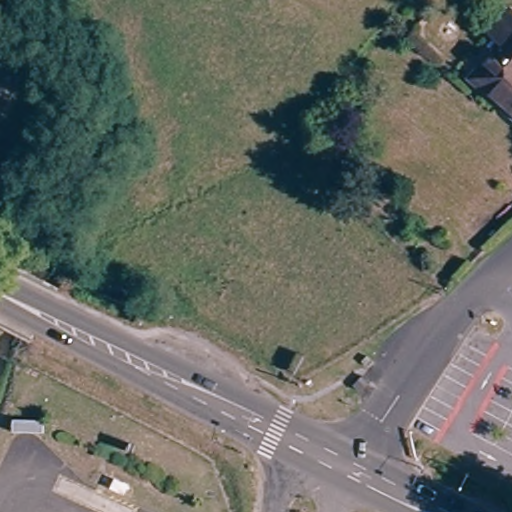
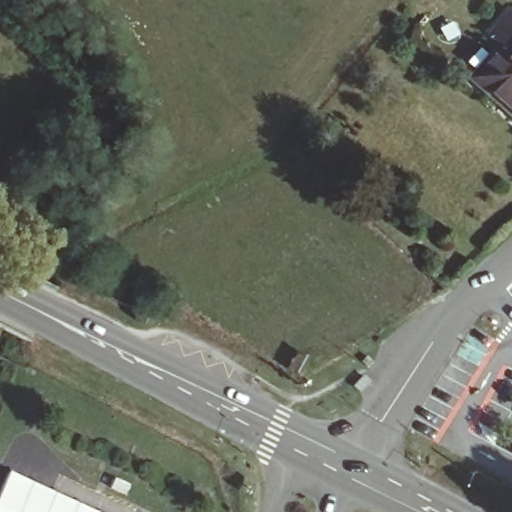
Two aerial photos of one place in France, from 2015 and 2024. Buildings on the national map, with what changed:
unchanged [(482,74),(507,45),(494,33),(512,13),(512,100),(482,74)]
new [(0,512),(0,494),(10,472),(98,512),(0,512)]

